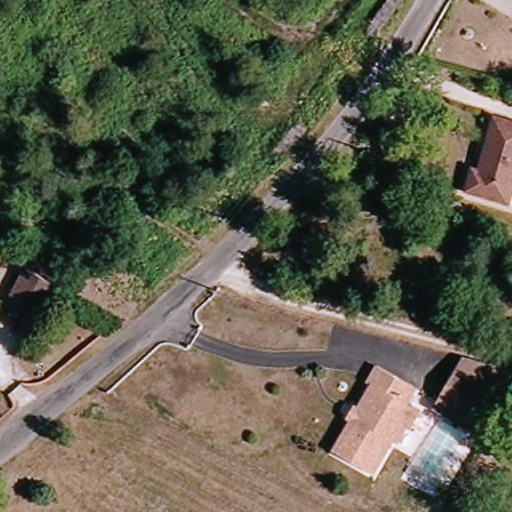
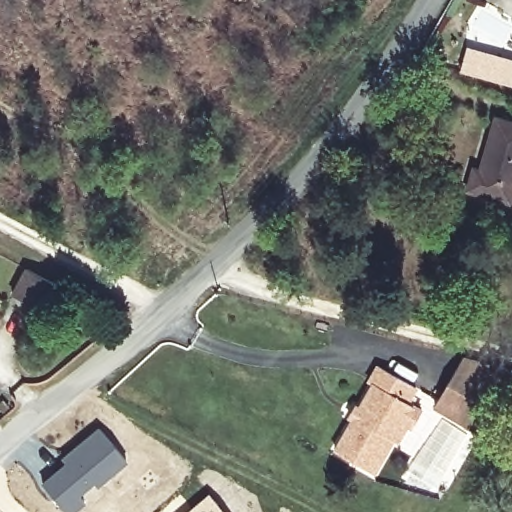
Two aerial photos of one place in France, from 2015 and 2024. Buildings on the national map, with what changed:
unchanged [(462,192),(469,169),(477,170),(493,119),(512,125),(512,180),(505,204),(462,192)]
unchanged [(43,317),(12,299),(28,270),(60,289),(43,317)]
unchanged [(477,360),(512,369),(512,373),(492,409),(446,384),(461,356),(477,360)]
unchanged [(367,386),(376,369),(414,392),(406,409),(409,410),(419,416),(411,432),(406,429),(396,447),(391,445),(371,479),(331,454),(351,422),(346,419),(351,409),(356,412),(371,389),(367,386)]
unchanged [(492,409),(479,432),(433,406),(446,384),(492,409)]
new [(64,462),(60,457),(98,425),(128,462),(97,488),(94,484),(80,495),(85,503),(74,512),(65,512),(40,483),(64,462)]
new [(208,492),(225,512),(184,512),(208,492)]

